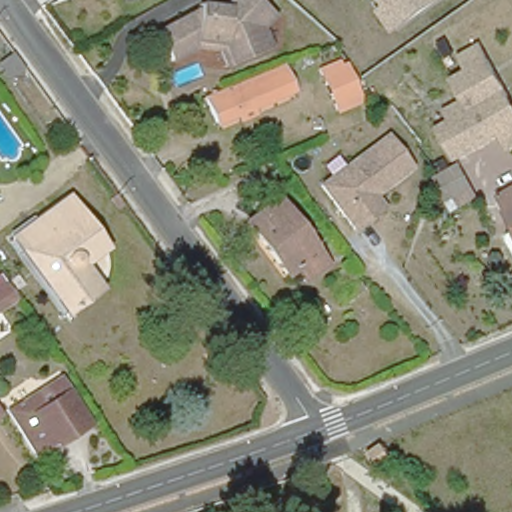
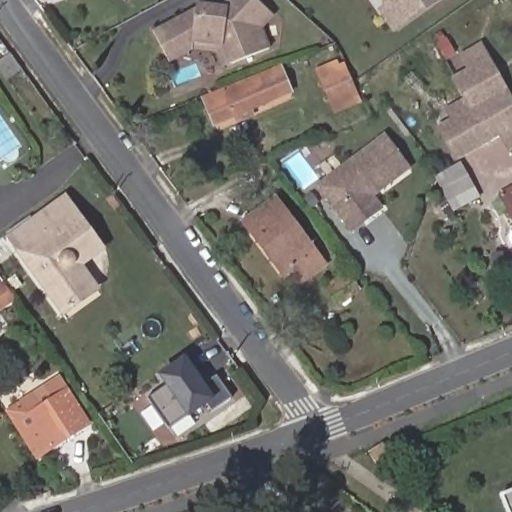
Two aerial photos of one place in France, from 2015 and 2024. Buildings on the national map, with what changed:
unchanged [(195,55),(172,68),(156,39),(200,14),(201,8),(227,9),(236,0),(257,0),(276,20),(266,34),(273,54),(233,72),(225,74),(219,59),(195,55)]
unchanged [(384,12),(391,7),(386,0),(441,0),(398,31),(384,12)]
unchanged [(510,149),(502,135),(458,159),(442,129),(436,119),(466,101),(454,79),(473,68),(465,53),(481,44),(490,59),(512,99),(512,148),(510,149)]
unchanged [(11,85),(0,71),(0,70),(13,61),(24,76),(11,85)]
unchanged [(315,72),(332,64),(335,69),(340,67),(356,103),(333,113),(315,72)]
unchanged [(282,67),(293,94),(216,125),(204,98),(282,67)]
unchanged [(367,223),(354,233),(320,189),(386,139),(397,154),(410,170),(409,172),(373,199),(375,201),(383,211),(367,223)]
unchanged [(437,181),(460,169),(480,204),(454,218),(436,185),(434,183),(437,181)]
unchanged [(503,198),(512,192),(512,214),(503,198)]
unchanged [(332,262),(309,279),(299,265),(290,273),(250,219),(282,195),(332,262)]
unchanged [(83,268),(100,290),(91,297),(66,315),(12,239),(68,198),(100,243),(105,251),(83,268)]
unchanged [(123,212),(116,216),(110,207),(116,203),(123,212)]
unchanged [(509,245),(509,239),(512,238),(512,252),(509,245)]
unchanged [(360,292),(352,298),(349,294),(334,303),(321,283),(345,268),(360,292)]
unchanged [(0,313),(0,282),(15,304),(0,313)]
new [(187,416),(170,429),(149,399),(167,387),(159,375),(186,356),(206,384),(218,377),(234,399),(213,413),(208,405),(189,419),(187,416)]
unchanged [(90,426),(40,459),(10,413),(61,380),(90,426)]
unchanged [(366,451),(381,441),(385,446),(391,455),(377,466),(368,453),(366,451)]
new [(502,496),(512,491),(512,512),(508,512),(502,496)]

